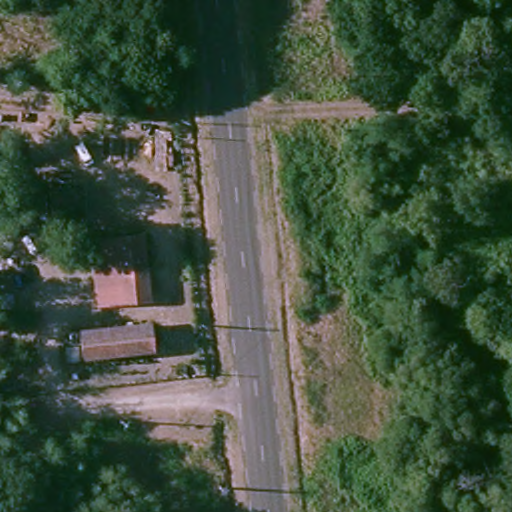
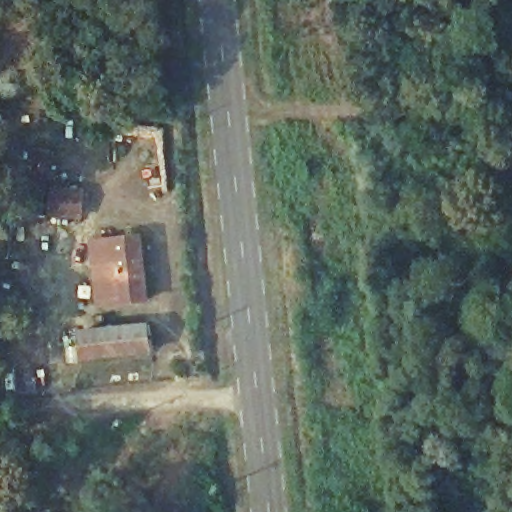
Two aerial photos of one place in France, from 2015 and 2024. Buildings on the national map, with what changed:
unchanged [(90,216),(45,213),(47,186),(88,182),(90,216)]
unchanged [(147,298),(125,300),(120,238),(140,236),(147,298)]
unchanged [(86,360),(84,343),(68,344),(68,330),(156,321),(159,352),(86,360)]

